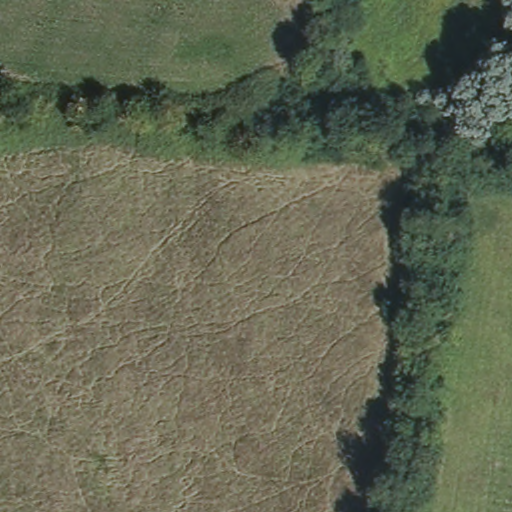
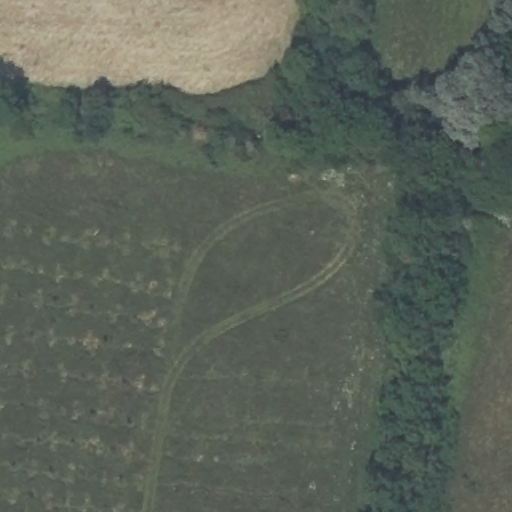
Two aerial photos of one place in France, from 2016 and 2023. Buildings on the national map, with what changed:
[]

